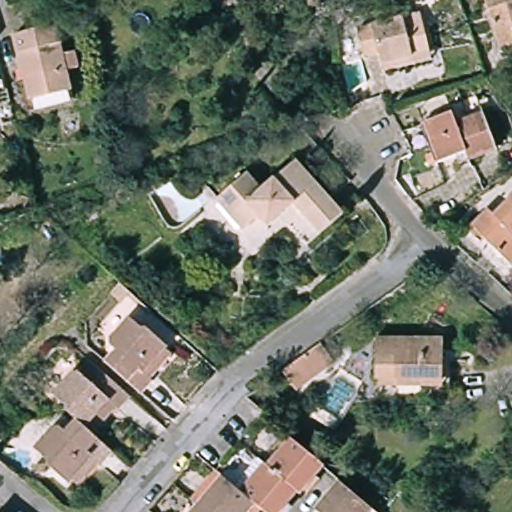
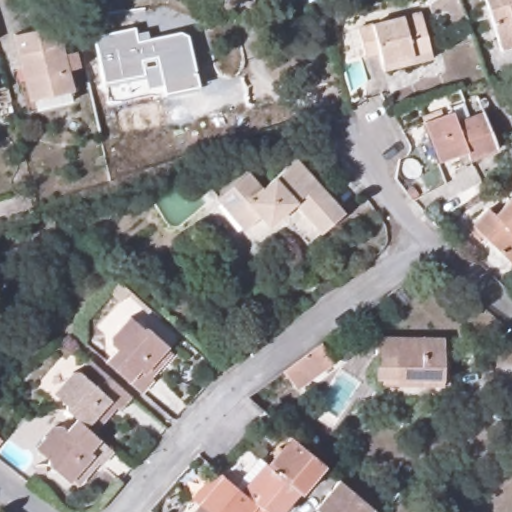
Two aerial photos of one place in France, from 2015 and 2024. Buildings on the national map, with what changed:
unchanged [(482,0),(512,0),(512,46),(498,50),(482,0)]
unchanged [(389,84),(386,76),(383,65),(370,69),(363,42),(423,24),(435,60),(437,68),(389,84)]
unchanged [(15,35),(55,25),(62,54),(76,51),(80,67),(67,70),(72,91),(30,101),(15,35)]
new [(163,85),(148,88),(145,77),(105,86),(93,36),(135,26),(136,32),(147,30),(150,39),(180,31),(188,36),(199,87),(165,94),(163,85)]
unchanged [(425,125),(450,115),(456,128),(460,125),(474,120),(483,117),(495,150),(472,159),(470,152),(440,164),(425,125)]
unchanged [(244,174),(257,191),(293,162),(338,218),(314,237),(287,204),(260,225),(251,214),(235,227),(212,200),(244,174)]
unchanged [(495,211),(512,194),(512,256),(509,259),(472,221),(488,206),(495,211)]
unchanged [(144,374),(151,382),(139,396),(103,362),(113,352),(110,348),(109,346),(107,343),(108,342),(110,339),(110,337),(113,334),(127,318),(139,329),(146,330),(167,349),(144,374)]
unchanged [(441,338),(440,383),(392,382),(392,377),(372,377),(373,337),(441,338)]
unchanged [(322,344),(336,363),(298,391),(284,372),(322,344)]
unchanged [(77,425),(66,414),(70,410),(56,398),(78,376),(93,390),(104,379),(134,406),(121,419),(117,414),(111,409),(88,435),(77,425)]
unchanged [(93,439),(115,459),(101,474),(91,464),(70,487),(52,470),(52,465),(38,452),(57,432),(65,439),(77,425),(88,435),(93,439)]
unchanged [(282,512),(261,512),(254,506),(249,512),(192,512),(199,504),(191,497),(215,471),(222,478),(239,493),(263,466),(267,469),(292,440),(325,471),(301,499),(297,496),(282,512)]
unchanged [(374,512),(323,512),(346,486),(374,512)]

